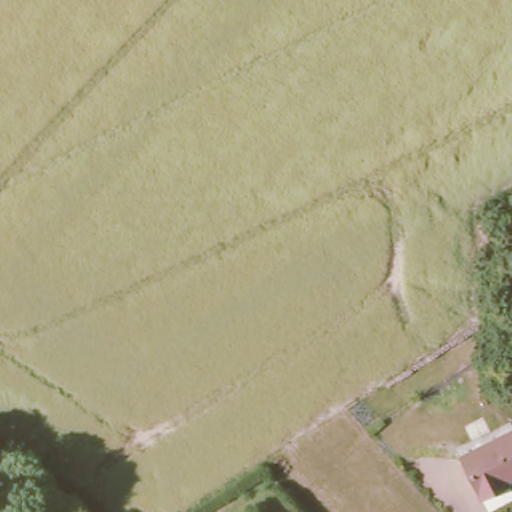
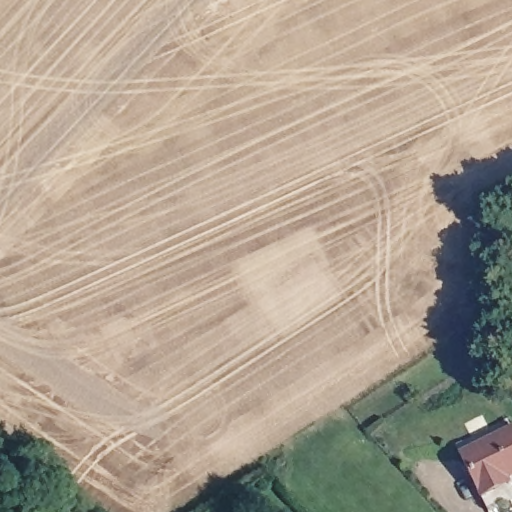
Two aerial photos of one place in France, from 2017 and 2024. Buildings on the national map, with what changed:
unchanged [(510,251),(497,257),(480,222),(492,217),(510,251)]
unchanged [(482,492),(460,450),(512,424),(512,470),(506,473),(508,479),(499,483),(482,492)]

